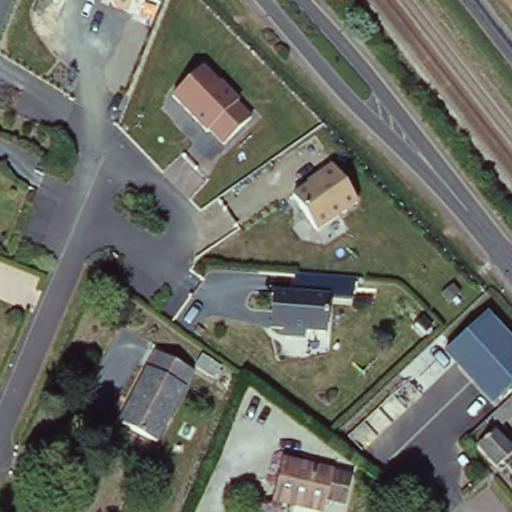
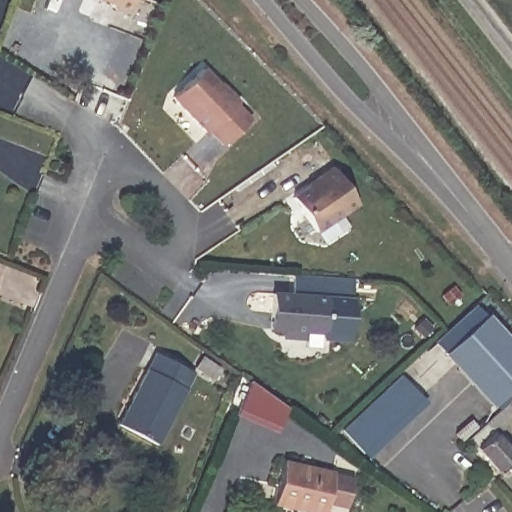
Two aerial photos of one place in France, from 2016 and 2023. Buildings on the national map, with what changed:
unchanged [(93,0),(134,0),(129,14),(93,0)]
unchanged [(200,65),(255,116),(226,146),(169,94),(200,65)]
unchanged [(335,164),(361,200),(318,232),(290,197),(335,164)]
unchanged [(305,292),(305,273),(360,280),(357,303),(331,301),(327,337),(271,334),(274,291),(305,292)]
unchanged [(508,336),(512,340),(512,385),(510,387),(492,403),(482,392),(444,349),(485,312),(508,336)]
unchanged [(127,403),(140,376),(152,353),(174,364),(189,371),(175,399),(161,426),(152,443),(116,424),(127,403)]
new [(338,425),(406,370),(430,399),(363,456),(338,425)]
new [(290,403),(277,433),(236,411),(254,377),(290,403)]
unchanged [(512,414),(512,433),(508,436),(512,440),(512,446),(508,449),(512,453),(512,480),(505,485),(473,451),(476,448),(512,414)]
unchanged [(278,458),(328,469),(327,472),(345,476),(339,501),(322,497),(318,508),(270,497),(278,458)]

